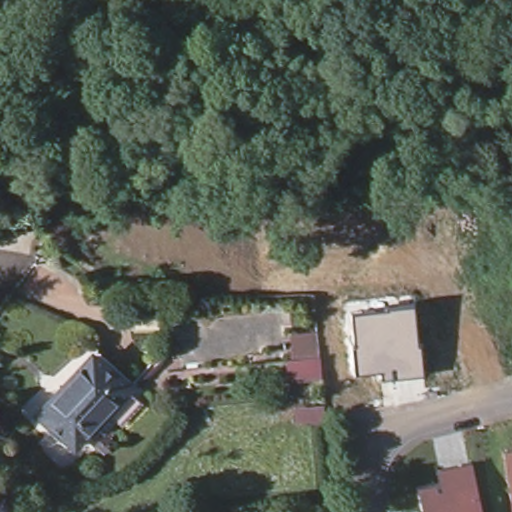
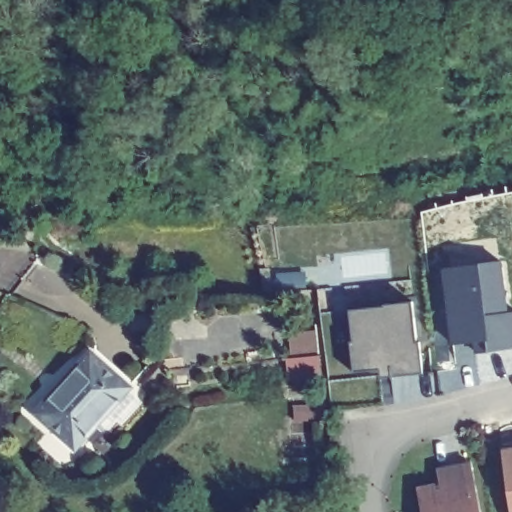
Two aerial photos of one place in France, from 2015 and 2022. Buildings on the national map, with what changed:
new [(502,262),(511,313),(512,313),(512,348),(488,352),(476,354),(475,342),(452,345),(443,270),(480,264),(502,262)]
unchanged [(349,311),(412,304),(415,344),(420,345),(422,373),(380,378),(379,371),(355,372),(349,311)]
unchanged [(76,448),(39,413),(94,354),(131,389),(76,448)]
unchanged [(320,358),(322,378),(292,381),(291,360),(320,358)]
unchanged [(512,448),(512,512),(511,512),(502,449),(512,448)]
unchanged [(420,491),(420,490),(443,486),(440,470),(442,470),(442,472),(471,466),(470,464),(472,464),(478,500),(477,500),(477,498),(475,499),(478,512),(425,512),(422,491),(420,491)]

